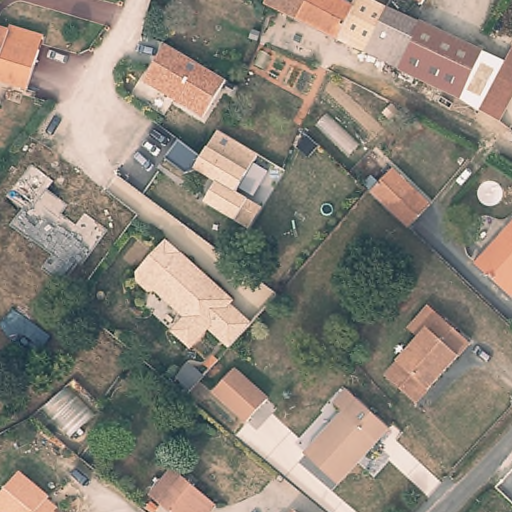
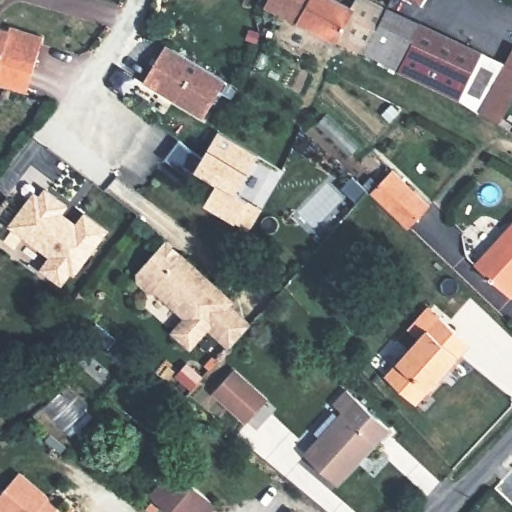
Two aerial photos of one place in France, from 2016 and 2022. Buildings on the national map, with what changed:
unchanged [(342,2),(344,0),(371,0),(377,3),(367,20),(356,45),(268,3),(259,0),(338,0),(342,2)]
unchanged [(367,20),(377,3),(458,39),(463,35),(472,43),(448,94),(388,62),(374,56),(362,48),(356,45),(367,20)]
unchanged [(31,89),(0,82),(0,25),(10,28),(8,39),(41,48),(31,89)]
unchanged [(512,93),(498,122),(486,115),(478,110),(503,60),(512,42),(512,93)]
unchanged [(226,80),(205,117),(175,99),(166,113),(148,102),(156,90),(145,81),(167,43),(226,80)]
unchanged [(261,154),(237,194),(262,206),(251,226),(238,218),(236,222),(205,203),(217,185),(193,169),(186,176),(164,156),(177,137),(203,154),(219,128),(261,154)]
unchanged [(431,204),(409,229),(370,194),(391,170),(431,204)]
new [(75,274),(72,272),(62,285),(39,267),(47,255),(7,225),(34,189),(41,192),(46,185),(69,202),(63,211),(76,222),(85,210),(109,228),(75,274)]
unchanged [(475,264),(512,219),(512,294),(511,295),(475,264)]
unchanged [(231,303),(227,307),(249,327),(236,341),(228,349),(207,328),(205,331),(189,348),(172,332),(185,318),(167,302),(156,291),(149,291),(137,281),(137,273),(167,243),(231,303)]
unchanged [(435,308),(463,334),(410,394),(381,368),(435,308)]
unchanged [(236,367),(272,399),(252,421),(216,389),(236,367)]
unchanged [(343,411),(334,401),(347,386),(386,421),(335,480),(305,453),(343,411)]
unchanged [(217,503),(210,512),(170,512),(150,494),(172,466),(217,503)]
unchanged [(53,510),(52,512),(0,512),(0,493),(14,476),(44,500),(42,502),(53,510)]
unchanged [(294,512),(286,512),(290,508),(294,512)]

